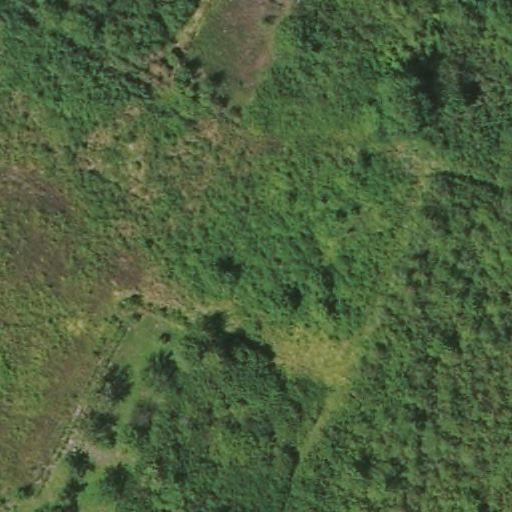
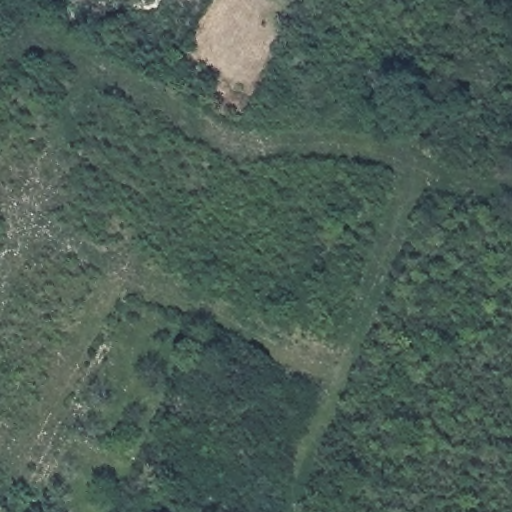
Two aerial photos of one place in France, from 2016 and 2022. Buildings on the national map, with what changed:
[]

